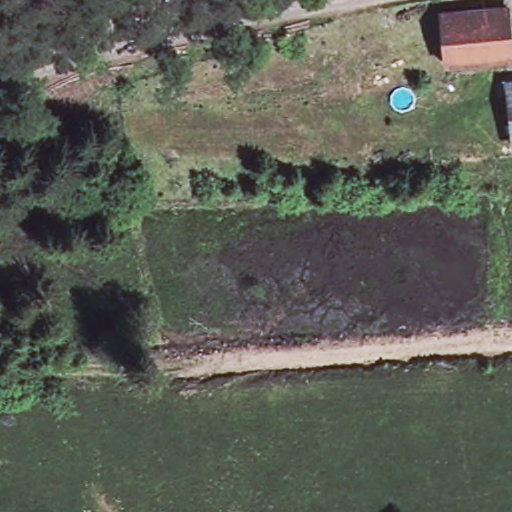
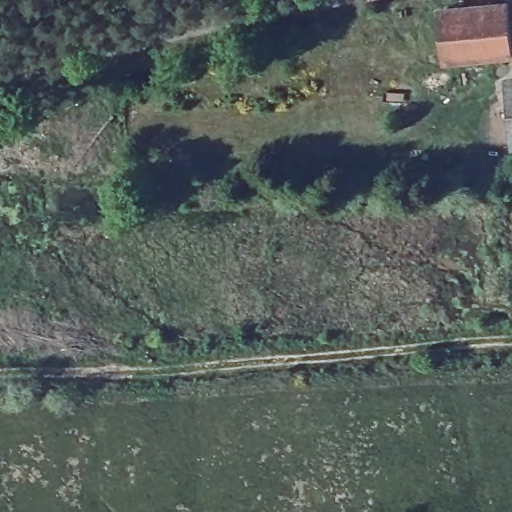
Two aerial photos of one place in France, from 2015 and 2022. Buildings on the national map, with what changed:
unchanged [(439,11),(508,5),(509,10),(512,44),(512,55),(444,62),(440,17),(439,11)]
unchanged [(504,87),(503,85),(512,83),(512,131),(506,99),(504,87)]

